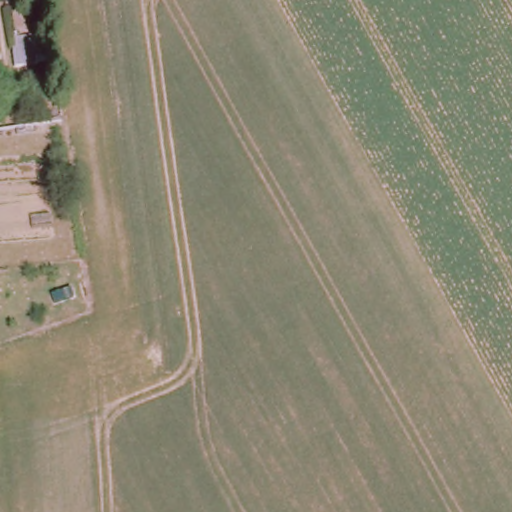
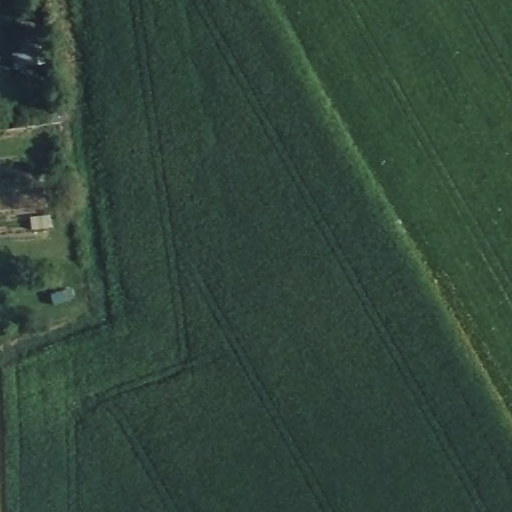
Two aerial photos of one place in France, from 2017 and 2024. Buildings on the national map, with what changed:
unchanged [(13,69),(8,39),(27,35),(32,65),(13,69)]

